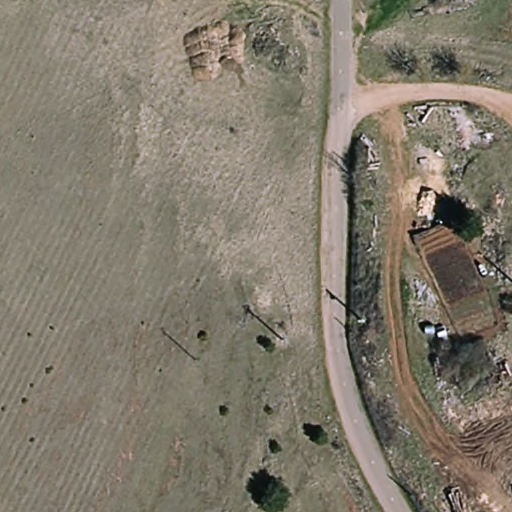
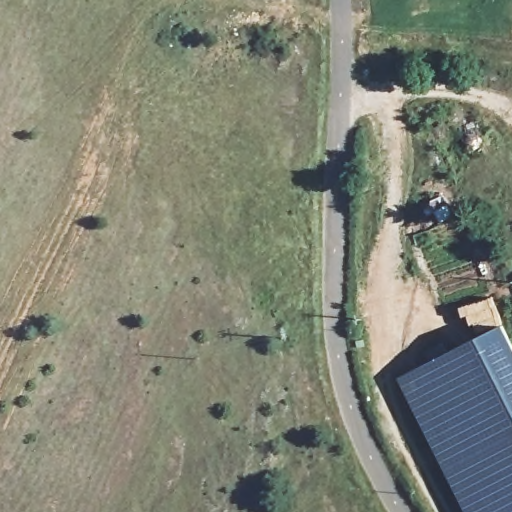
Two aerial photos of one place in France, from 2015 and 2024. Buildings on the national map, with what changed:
new [(501,327),(512,349),(512,512),(464,512),(398,379),(501,327)]

